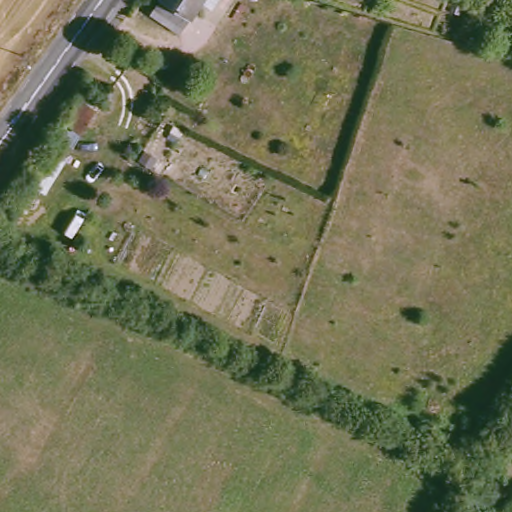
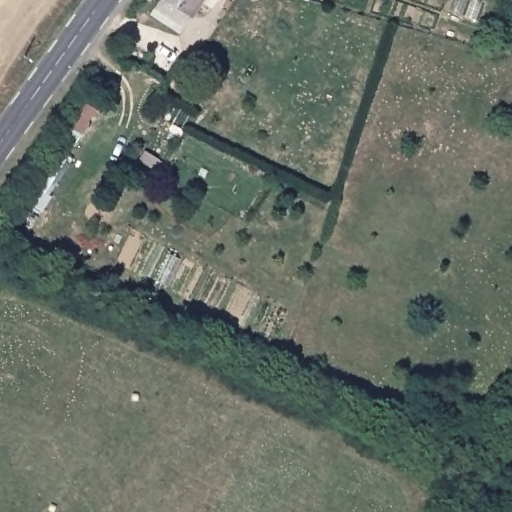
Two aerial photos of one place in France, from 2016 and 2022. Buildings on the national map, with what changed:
unchanged [(158,5),(161,0),(203,0),(186,25),(158,5)]

